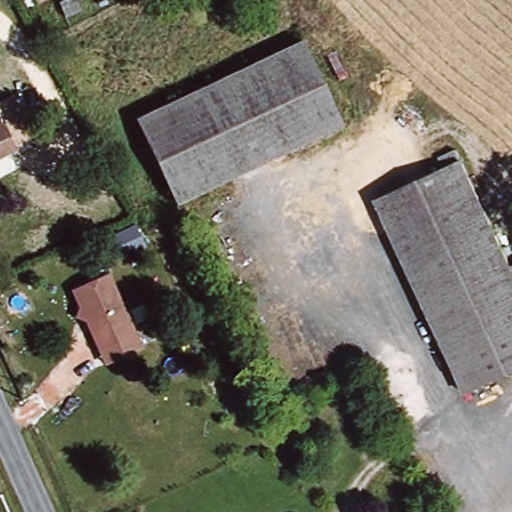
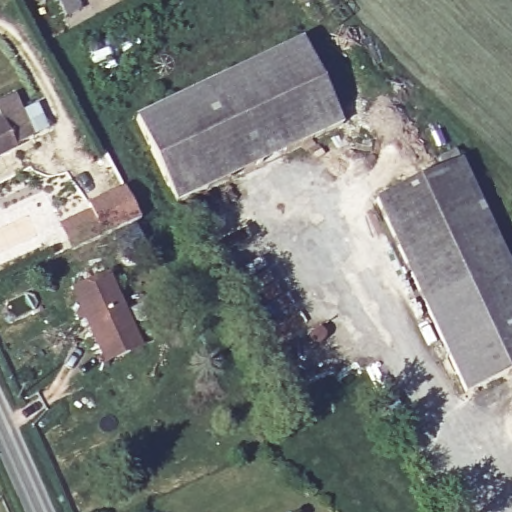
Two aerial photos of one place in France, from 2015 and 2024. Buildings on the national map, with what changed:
unchanged [(341,128),(176,204),(138,120),(303,44),(341,128)]
unchanged [(30,138),(0,154),(0,98),(9,93),(30,138)]
unchanged [(413,188),(448,173),(442,163),(459,155),(512,268),(512,373),(467,395),(378,206),(397,197),(395,192),(411,185),(413,188)]
new [(123,188),(140,221),(104,237),(71,251),(59,226),(91,211),(89,205),(123,188)]
unchanged [(97,354),(89,335),(95,331),(93,327),(76,320),(79,312),(70,294),(106,277),(140,351),(129,357),(105,369),(97,354)]

